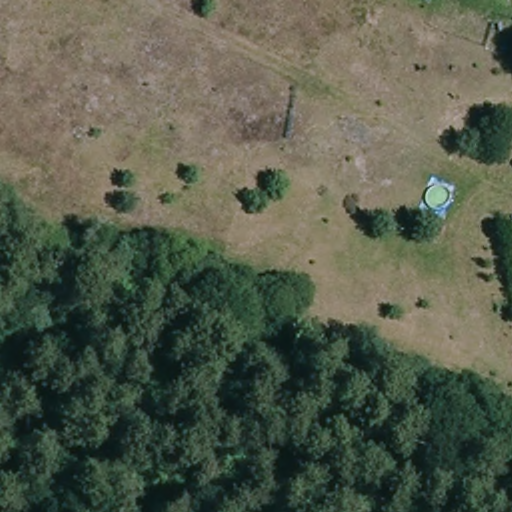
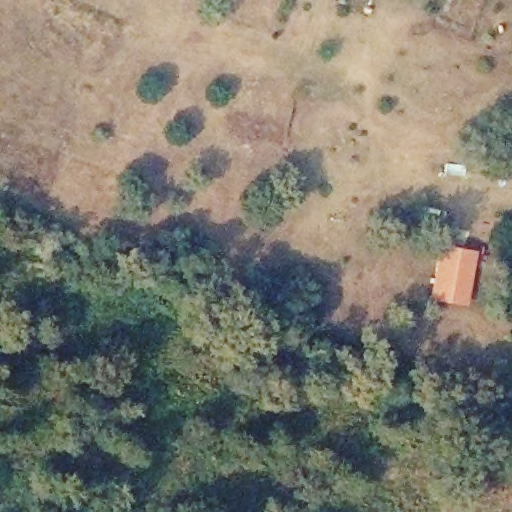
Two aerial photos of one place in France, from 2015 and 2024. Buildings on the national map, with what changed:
new [(429,297),(439,243),(476,249),(467,303),(429,297)]

